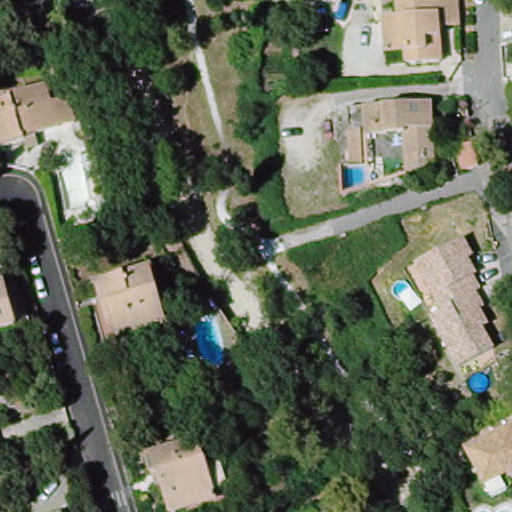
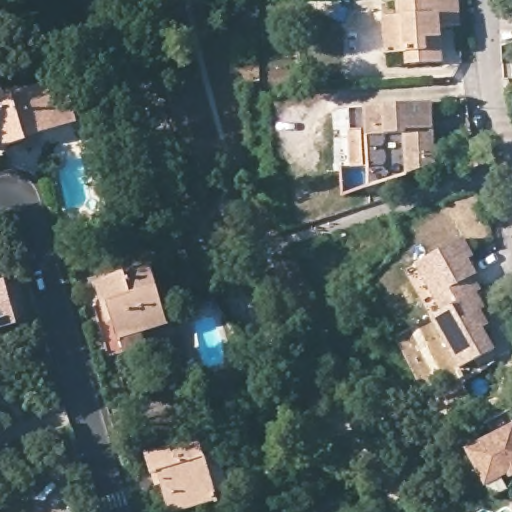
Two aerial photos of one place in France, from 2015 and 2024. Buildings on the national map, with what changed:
unchanged [(394,59),(391,23),(406,21),(404,6),(464,1),(466,30),(446,31),(449,65),(412,69),(395,70),(394,59)]
unchanged [(27,154),(24,144),(0,151),(0,106),(12,103),(12,99),(45,89),(51,107),(68,101),(76,125),(58,131),(34,138),(38,151),(27,154)]
unchanged [(377,184),(376,166),(360,167),(356,108),(437,103),(441,163),(377,184)]
unchanged [(465,169),(459,146),(473,143),(479,165),(465,169)]
unchanged [(422,260),(468,239),(495,307),(488,311),(507,354),(463,376),(436,313),(428,303),(409,264),(422,260)]
unchanged [(118,339),(113,323),(107,323),(96,282),(152,265),(170,324),(118,339)]
unchanged [(9,288),(21,329),(0,335),(0,290),(9,288)]
unchanged [(512,478),(512,483),(512,484),(511,486),(510,487),(510,488),(509,489),(508,489),(493,498),(467,449),(512,424),(512,470),(509,472),(511,476),(512,477),(512,478)]
unchanged [(215,459),(227,501),(187,512),(164,512),(154,477),(147,479),(142,460),(196,446),(201,463),(215,459)]

